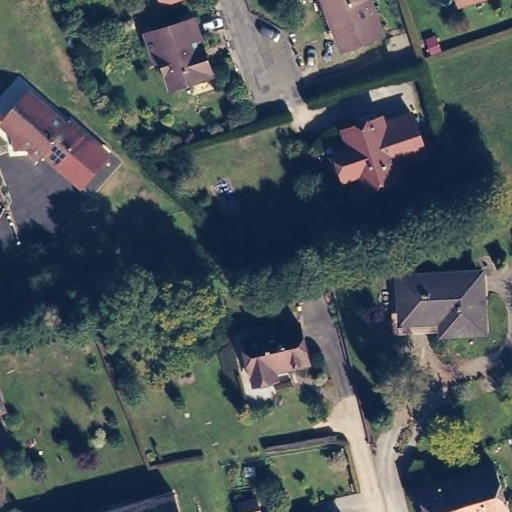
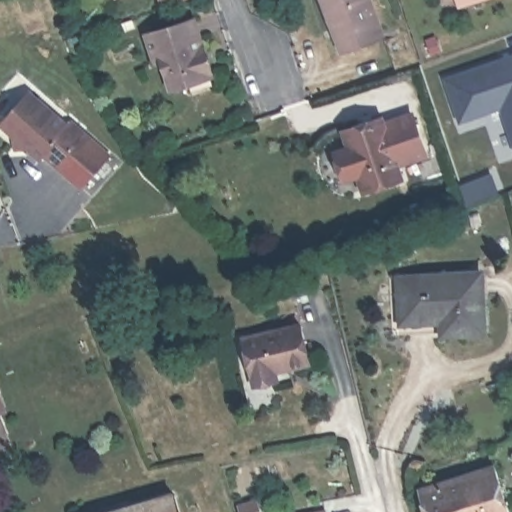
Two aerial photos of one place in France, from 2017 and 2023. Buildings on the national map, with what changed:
unchanged [(339,53),(321,0),(366,0),(379,40),(339,53)]
unchanged [(463,0),(467,0),(464,1),(463,0)]
unchanged [(188,84),(171,90),(161,59),(154,61),(152,55),(145,32),(193,17),(210,72),(211,76),(188,84)]
new [(459,123),(444,78),(512,55),(512,143),(500,109),(459,123)]
unchanged [(31,95),(68,125),(73,122),(116,162),(82,192),(46,155),(43,159),(29,148),(15,149),(15,138),(3,127),(31,95)]
unchanged [(389,119),(391,122),(419,114),(433,155),(404,164),(409,180),(372,192),(365,175),(353,179),(344,152),(356,148),(351,130),(389,119)]
unchanged [(449,326),(449,313),(410,315),(409,323),(399,323),(396,268),(407,267),(408,271),(471,268),(488,268),(492,325),(489,325),(449,326)]
unchanged [(302,320),(311,359),(276,367),(278,373),(256,376),(246,331),(302,320)]
unchanged [(6,411),(0,413),(0,395),(6,411)]
unchanged [(512,505),(512,512),(430,512),(423,488),(499,464),(512,505)]
unchanged [(180,494),(185,512),(116,512),(180,494)]
unchanged [(113,506),(114,512),(91,512),(113,506)]

